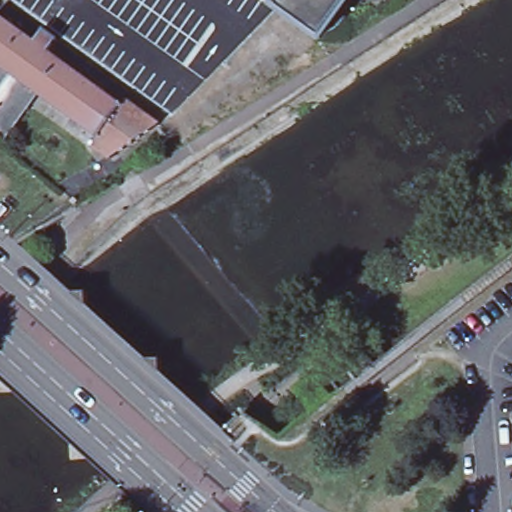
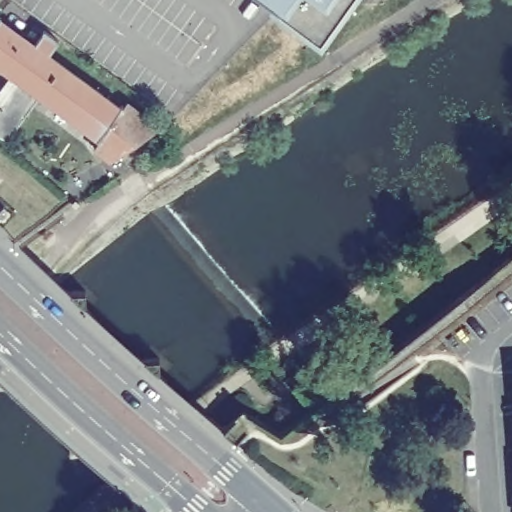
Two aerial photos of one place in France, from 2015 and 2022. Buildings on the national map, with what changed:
unchanged [(322,37),(271,0),(349,0),(322,37)]
unchanged [(12,139),(11,141),(0,133),(0,95),(7,85),(16,72),(0,61),(0,17),(1,15),(4,17),(2,20),(38,45),(46,33),(45,32),(47,29),(62,40),(60,43),(59,42),(51,53),(123,105),(125,102),(127,105),(104,138),(101,136),(102,134),(42,91),(33,104),(10,136),(12,139)]
unchanged [(127,105),(130,100),(163,125),(116,159),(98,146),(104,138),(127,105)]

